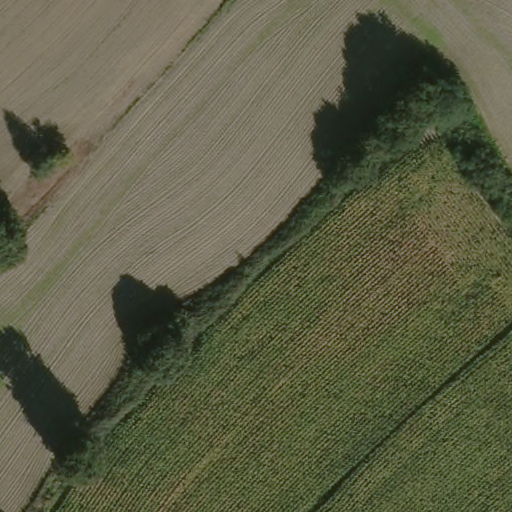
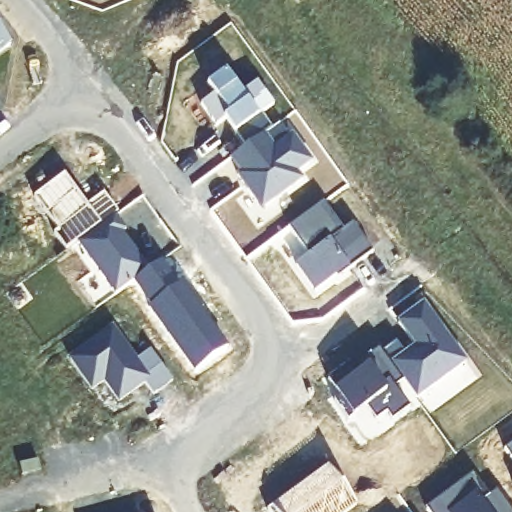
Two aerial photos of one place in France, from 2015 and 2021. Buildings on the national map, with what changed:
new [(0,53),(0,35),(9,46),(0,53)]
new [(223,122),(214,129),(198,108),(212,98),(205,89),(224,76),(239,97),(254,87),(271,109),(259,117),(270,132),(278,126),(287,140),(290,138),(309,165),(295,175),(300,182),(260,211),(236,177),(239,175),(229,161),(244,151),(223,122)]
new [(64,178),(86,208),(102,196),(116,215),(113,218),(76,244),(66,252),(55,236),(58,233),(35,200),(64,178)]
new [(321,206),(342,234),(350,227),(371,256),(336,281),(334,279),(313,294),(294,268),(307,259),(286,231),(321,206)]
new [(113,218),(123,232),(120,235),(148,273),(133,284),(115,297),(76,244),(113,218)]
new [(148,273),(159,265),(176,289),(182,285),(201,311),(199,313),(226,351),(195,373),(148,310),(151,308),(133,284),(148,273)]
new [(394,344),(404,358),(415,350),(396,325),(421,306),(464,364),(414,400),(401,383),(380,355),(394,344)]
new [(111,331),(134,363),(148,353),(170,383),(151,397),(142,384),(117,403),(102,383),(90,392),(68,361),(111,331)]
new [(351,364),(359,375),(365,370),(360,363),(378,350),(380,355),(401,383),(393,389),(408,409),(391,422),(385,415),(375,422),(365,409),(347,422),(333,403),(339,399),(327,382),(351,364)]
new [(512,445),(512,462),(504,451),(512,445)]
new [(328,465),(356,504),(346,512),(269,512),(267,509),(328,465)]
new [(471,475),(488,497),(496,491),(511,512),(427,512),(425,509),(471,475)]

